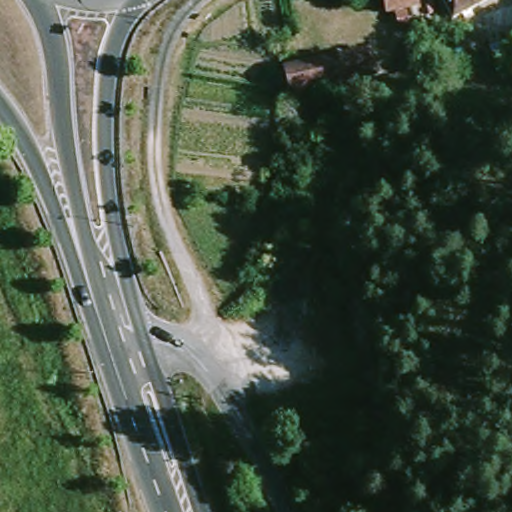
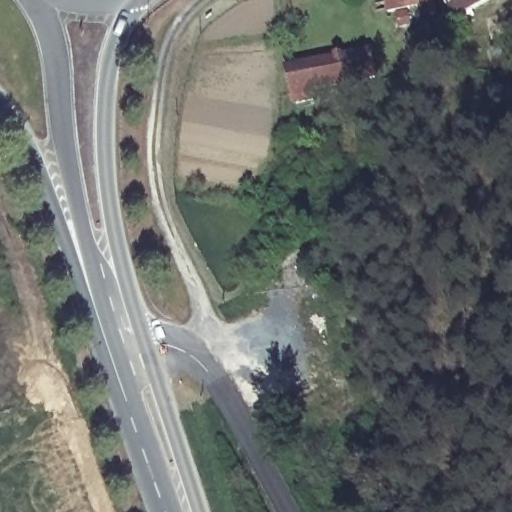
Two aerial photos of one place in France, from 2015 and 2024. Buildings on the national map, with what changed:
unchanged [(392,17),(384,20),(380,0),(415,0),(417,11),(392,17)]
unchanged [(499,0),(455,11),(452,0),(499,0)]
unchanged [(377,75),(338,85),(331,61),(370,49),(377,75)]
unchanged [(512,50),(512,70),(485,78),(480,59),(505,52),(512,50)]
unchanged [(338,85),(280,101),(273,79),(331,61),(338,85)]

